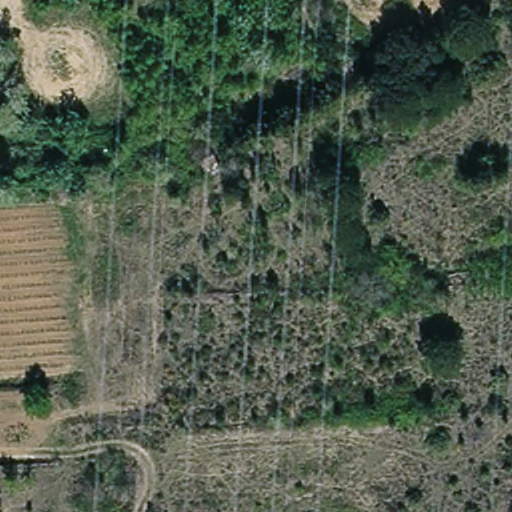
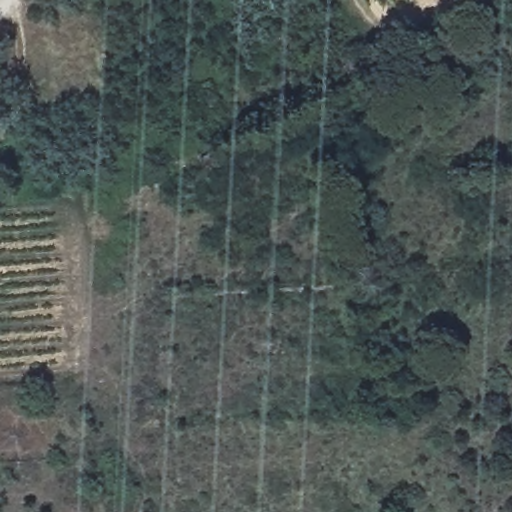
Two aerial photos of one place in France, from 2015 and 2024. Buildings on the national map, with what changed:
unchanged [(364,51),(379,43),(387,56),(372,65),(364,51)]

